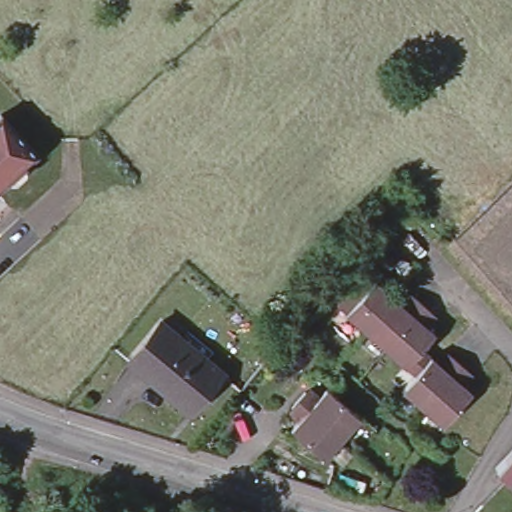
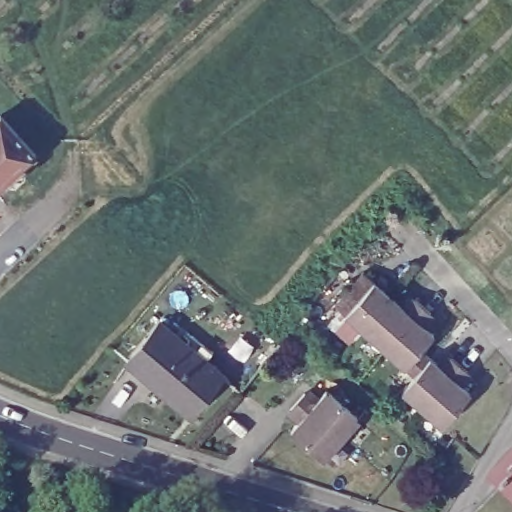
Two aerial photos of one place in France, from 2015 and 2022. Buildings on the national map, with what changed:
unchanged [(25,161),(0,184),(0,119),(32,155),(25,161)]
unchanged [(361,272),(391,298),(362,331),(332,304),(361,272)]
unchanged [(362,331),(391,298),(403,309),(413,298),(420,305),(382,349),(362,331)]
unchanged [(382,349),(420,305),(428,312),(419,323),(431,334),(418,349),(427,357),(411,375),(382,349)]
unchanged [(220,368),(187,409),(125,358),(158,318),(220,368)]
unchanged [(399,389),(411,375),(427,357),(440,368),(450,357),(457,364),(419,407),(399,389)]
unchanged [(465,370),(455,381),(468,392),(440,425),(419,407),(457,364),(465,370)]
unchanged [(343,437),(300,399),(307,391),(318,401),(330,388),(361,417),(343,437)]
unchanged [(325,458),(293,428),(305,416),(293,407),(300,399),(343,437),(325,458)]
unchanged [(500,468),(512,455),(512,479),(500,468)]

